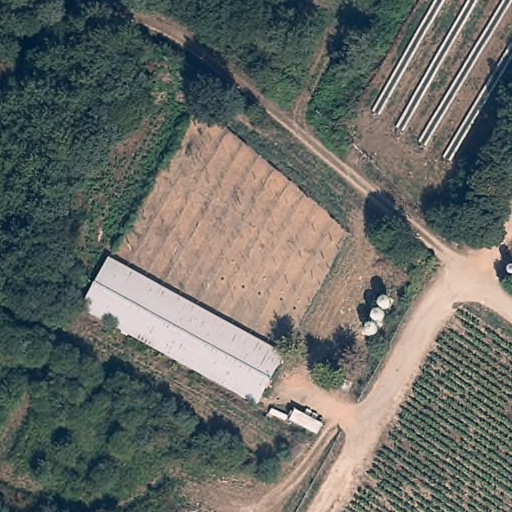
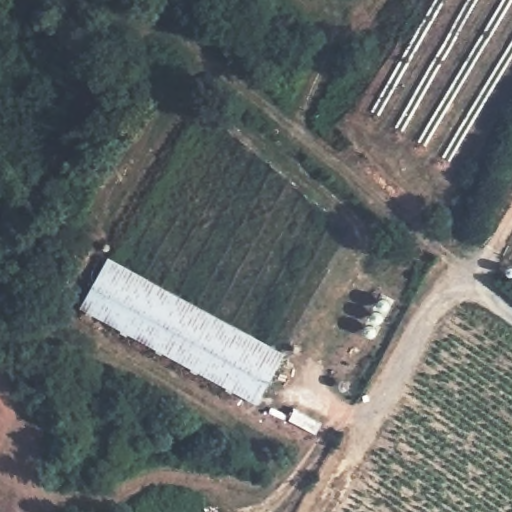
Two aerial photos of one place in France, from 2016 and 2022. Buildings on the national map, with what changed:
unchanged [(109,258),(287,354),(258,407),(79,311),(109,258)]

